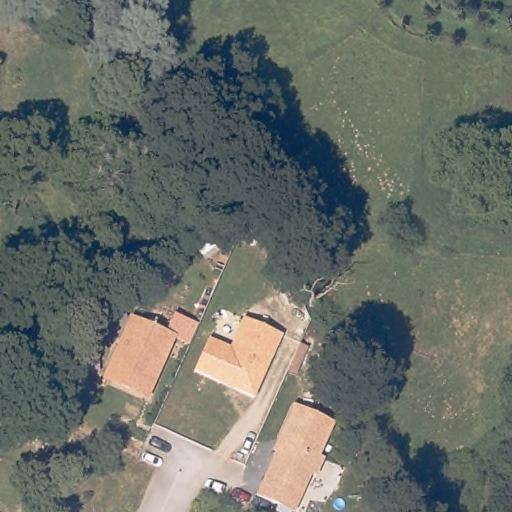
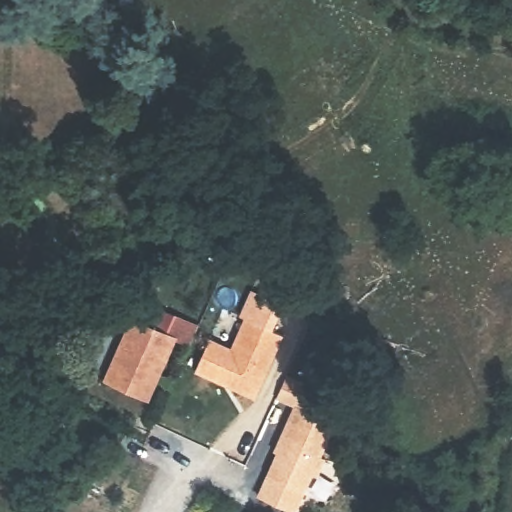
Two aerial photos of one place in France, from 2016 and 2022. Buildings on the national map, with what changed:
unchanged [(143,391),(116,379),(110,376),(116,363),(135,319),(175,336),(162,364),(149,393),(143,391)]
unchanged [(207,340),(230,350),(243,319),(281,336),(253,399),(232,390),(235,385),(226,382),(220,384),(193,373),(207,340)]
unchanged [(321,456),(326,458),(317,478),(312,475),(296,512),(289,512),(256,497),(275,453),(273,452),(293,405),(336,422),(321,456)]

